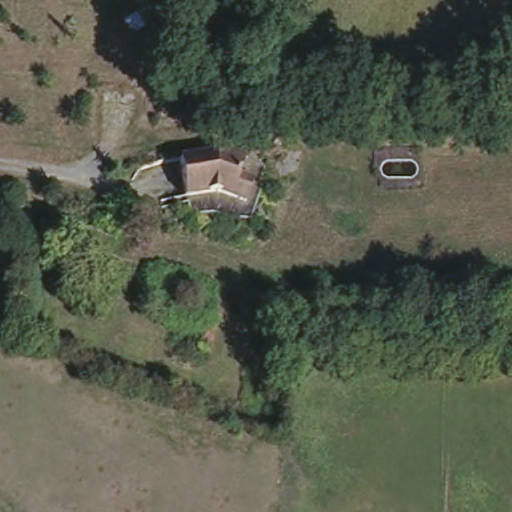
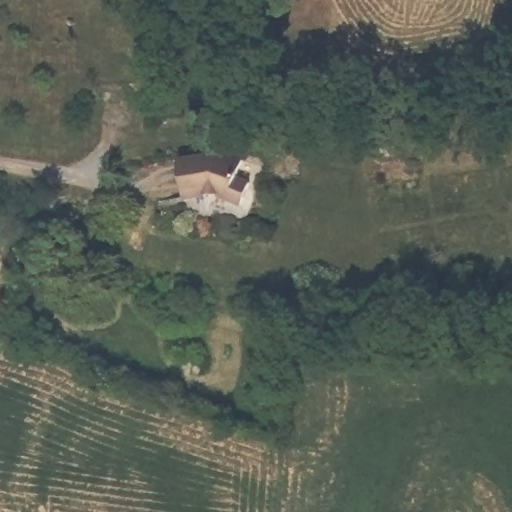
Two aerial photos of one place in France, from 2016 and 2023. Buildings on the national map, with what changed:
unchanged [(204,153),(207,153),(210,145),(243,156),(236,173),(250,179),(242,200),(216,190),(183,195),(177,156),(204,153)]

